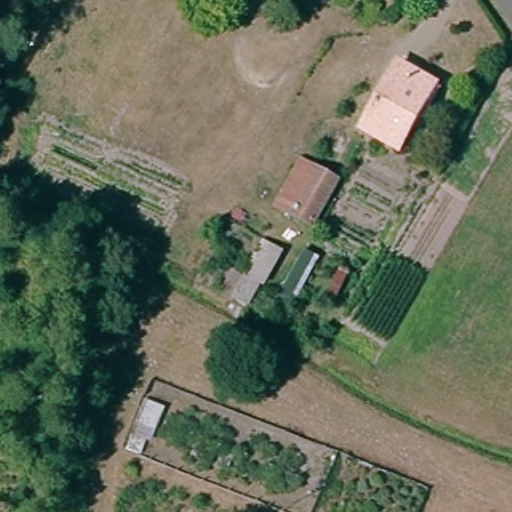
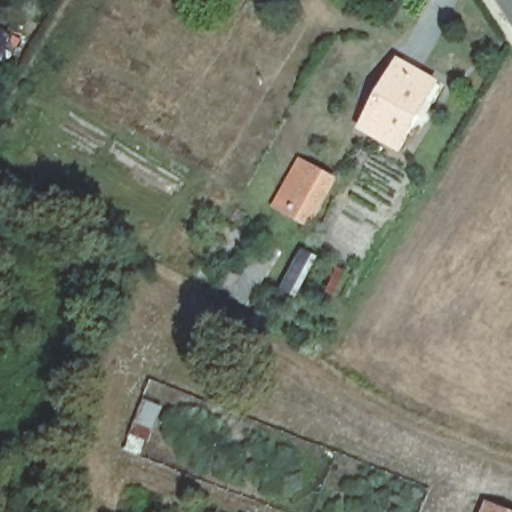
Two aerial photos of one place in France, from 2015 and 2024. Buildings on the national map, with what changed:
unchanged [(441,90),(420,125),(411,119),(392,151),(354,130),(392,63),(441,90)]
unchanged [(298,156),(337,180),(311,229),(268,206),(298,156)]
unchanged [(229,295),(217,288),(229,270),(241,275),(261,239),(278,251),(258,287),(256,286),(242,310),(226,301),(229,295)]
new [(482,512),(487,501),(512,511),(512,512),(482,512)]

